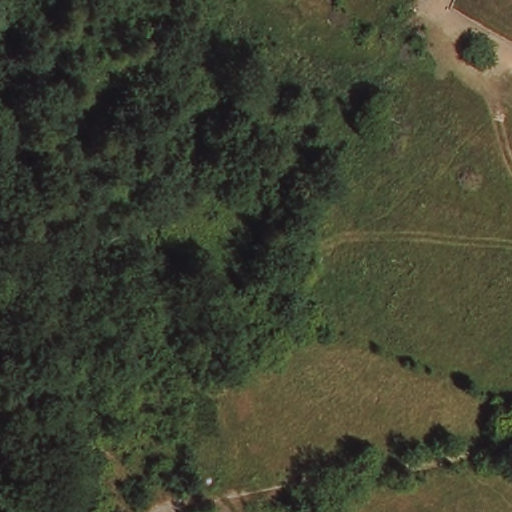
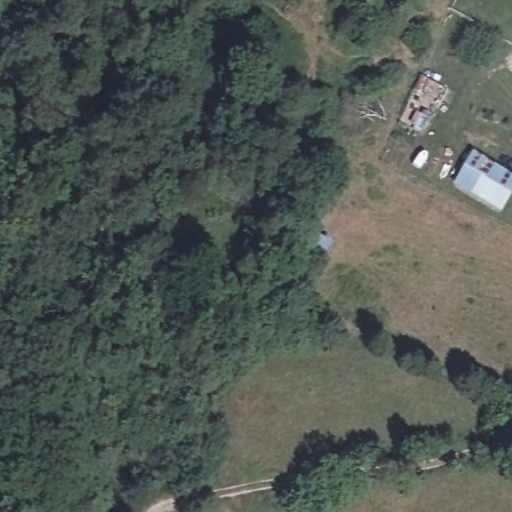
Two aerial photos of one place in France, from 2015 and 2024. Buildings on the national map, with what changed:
new [(510,175),(502,186),(512,193),(512,195),(501,212),(458,184),(465,173),(462,171),(466,164),(483,174),(490,162),(510,175)]
unchanged [(295,269),(302,249),(326,258),(317,277),(295,269)]

